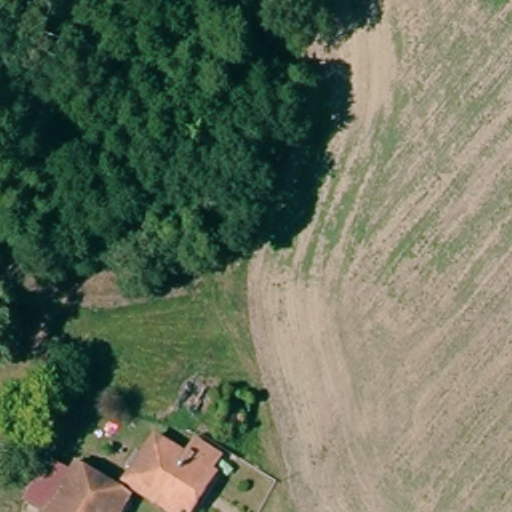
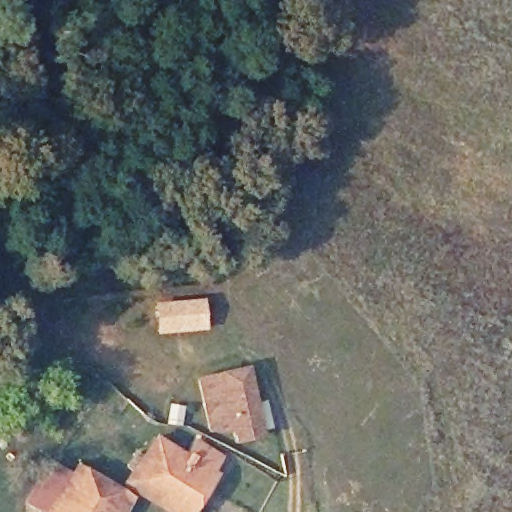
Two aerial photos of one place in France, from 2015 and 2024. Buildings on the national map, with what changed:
new [(205,299),(209,330),(157,335),(155,303),(205,299)]
new [(250,367),(264,438),(236,445),(232,433),(209,433),(197,378),(217,373),(250,367)]
unchanged [(190,512),(170,512),(124,483),(157,433),(188,452),(197,439),(225,456),(190,512)]
unchanged [(49,457),(70,471),(47,511),(24,495),(49,457)]
unchanged [(47,511),(70,471),(75,463),(130,493),(121,512),(46,512),(47,511)]

